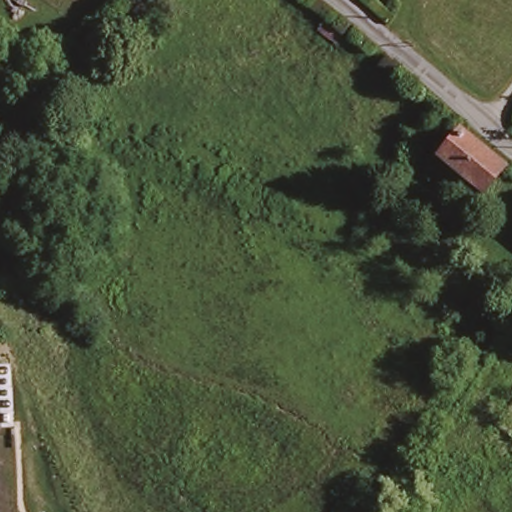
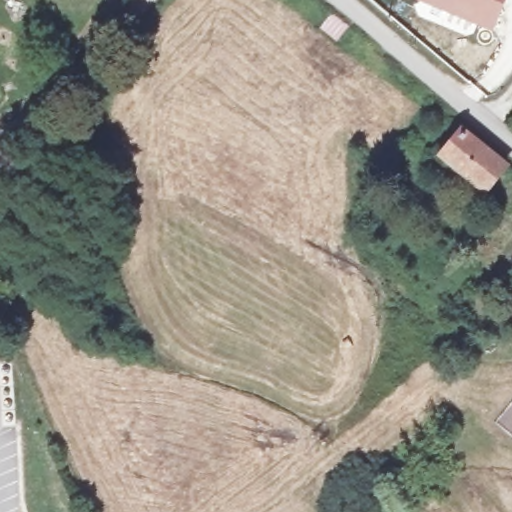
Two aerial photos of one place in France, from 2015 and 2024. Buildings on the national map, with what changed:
new [(417,0),(505,0),(493,30),(417,0)]
unchanged [(510,162),(491,189),(444,156),(463,129),(510,162)]

